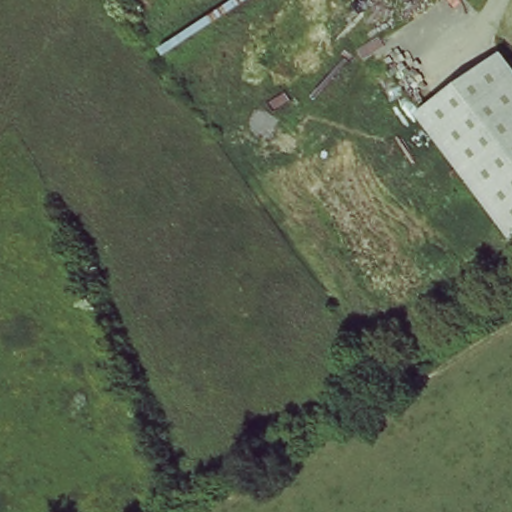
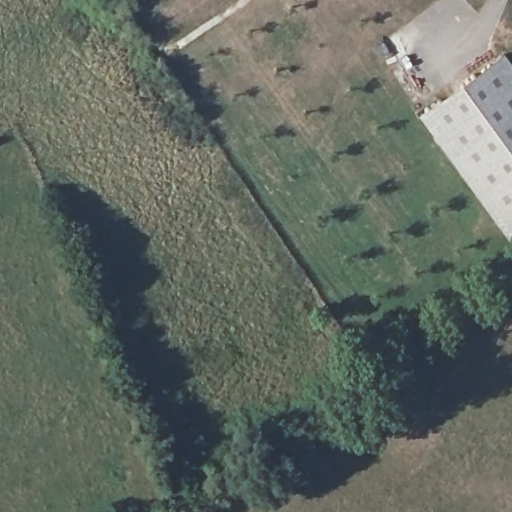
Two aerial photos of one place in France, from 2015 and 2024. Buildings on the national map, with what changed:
unchanged [(512,70),(512,239),(418,116),(501,55),(512,70)]

